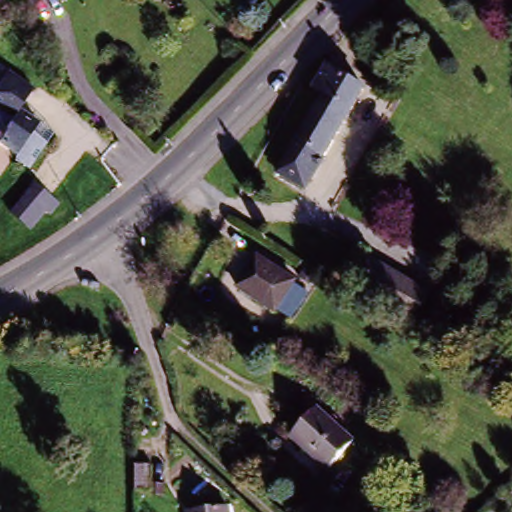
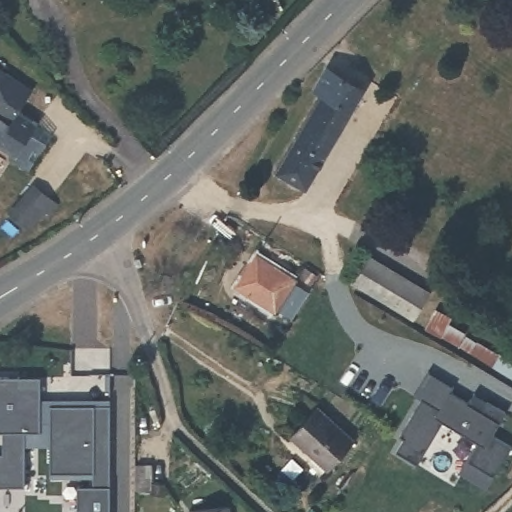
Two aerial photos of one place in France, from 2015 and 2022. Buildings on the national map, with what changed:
unchanged [(58,0),(68,0),(60,3),(58,0)]
unchanged [(366,90),(312,185),(301,178),(297,183),(282,175),(327,99),(317,92),(331,70),(366,90)]
unchanged [(32,100),(16,119),(15,119),(4,132),(0,129),(0,75),(32,100)]
unchanged [(41,154),(21,181),(7,171),(11,166),(0,158),(0,129),(4,132),(15,119),(16,119),(36,135),(49,145),(41,154)]
unchanged [(38,190),(53,204),(27,230),(13,216),(38,190)]
unchanged [(291,321),(275,310),(271,313),(238,291),(257,260),(292,282),(290,285),(306,297),(291,321)]
unchanged [(352,291),(372,260),(443,302),(421,331),(352,291)]
new [(25,488),(0,488),(0,382),(22,382),(22,391),(42,392),(42,438),(27,437),(25,488)]
new [(400,440),(417,410),(410,406),(423,383),(448,398),(445,404),(463,415),(471,403),(474,397),(487,405),(506,416),(492,439),(511,450),(493,480),(468,465),(478,447),(443,426),(417,468),(396,455),(403,442),(400,440)]
new [(42,438),(42,411),(52,411),(52,440),(59,440),(59,448),(52,448),(52,452),(26,451),(27,437),(42,438)]
new [(79,492),(95,492),(95,480),(64,479),(51,479),(51,470),(52,448),(59,448),(59,440),(52,440),(52,411),(96,411),(111,411),(111,448),(111,512),(79,512),(79,492)]
unchanged [(288,443),(319,411),(357,441),(326,475),(288,443)]
unchanged [(147,473),(147,464),(160,463),(160,491),(140,493),(140,491),(140,473),(147,473)]
unchanged [(208,510),(227,508),(227,512),(198,512),(208,510)]

